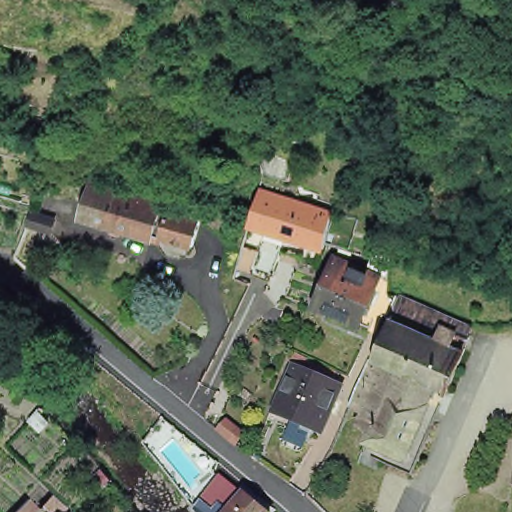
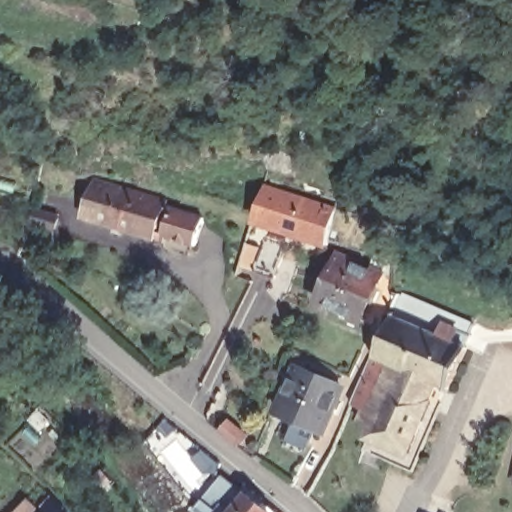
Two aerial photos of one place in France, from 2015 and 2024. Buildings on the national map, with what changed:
unchanged [(254,224),(264,190),(268,181),(316,195),(314,205),(334,210),(326,242),(325,245),(254,224)]
unchanged [(171,253),(168,258),(164,257),(159,242),(153,240),(80,217),(91,183),(163,205),(162,210),(200,221),(193,247),(188,246),(185,257),(171,253)]
unchanged [(58,216),(53,231),(29,223),(33,210),(58,216)]
unchanged [(29,265),(19,258),(30,230),(41,234),(29,265)]
unchanged [(274,276),(253,270),(263,240),(284,246),(274,276)]
unchanged [(361,408),(348,402),(354,390),(357,381),(376,337),(386,314),(379,312),(377,317),(373,315),(368,323),(357,318),(314,300),(333,256),(376,275),(390,281),(388,291),(394,293),(469,326),(461,346),(462,346),(445,388),(430,382),(423,401),(425,402),(403,453),(366,436),(369,427),(355,421),(361,408)]
unchanged [(339,395),(334,407),(331,406),(322,426),(279,406),(299,363),(342,383),(337,395),(339,395)]
unchanged [(246,435),(238,445),(218,430),(226,420),(246,435)]
unchanged [(202,497),(219,475),(232,486),(241,495),(243,491),(267,512),(220,512),(214,507),(202,497)]
unchanged [(47,512),(41,506),(51,496),(64,509),(61,512),(47,512)]
unchanged [(36,507),(32,512),(13,512),(27,498),(36,507)]

